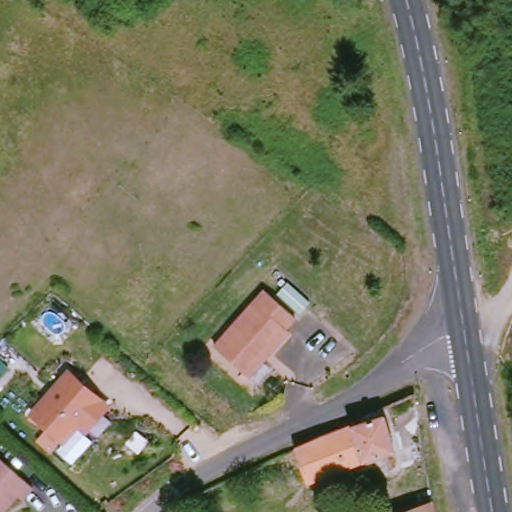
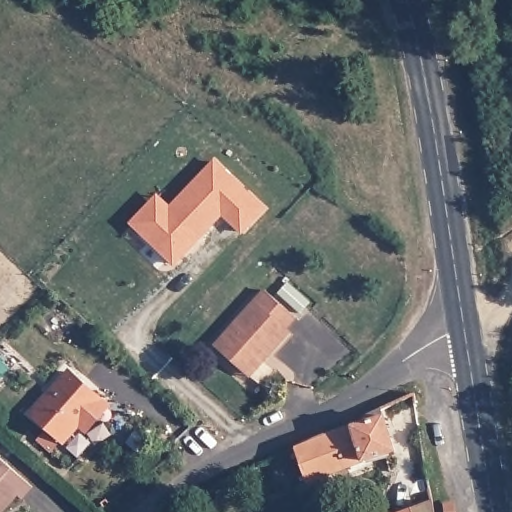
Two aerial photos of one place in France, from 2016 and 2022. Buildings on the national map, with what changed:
new [(266,208),(244,233),(222,216),(175,266),(131,223),(157,194),(170,205),(215,159),(266,208)]
unchanged [(306,303),(296,314),(274,295),(284,283),(306,303)]
unchanged [(243,376),(211,350),(261,291),(292,319),(283,330),(287,333),(267,357),(247,380),(243,376)]
unchanged [(90,432),(84,426),(68,445),(37,415),(76,373),(106,403),(111,408),(90,432)]
unchanged [(397,453),(311,483),(299,449),(358,424),(387,415),(397,453)]
unchanged [(34,488),(27,497),(23,493),(7,512),(0,512),(0,456),(34,488)]
unchanged [(415,512),(421,510),(418,496),(438,491),(441,512),(415,512)]

